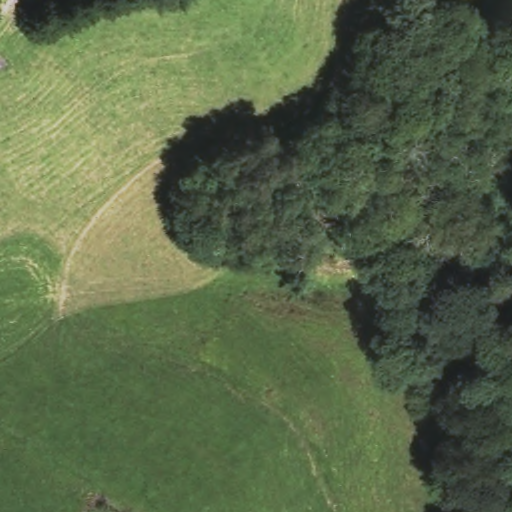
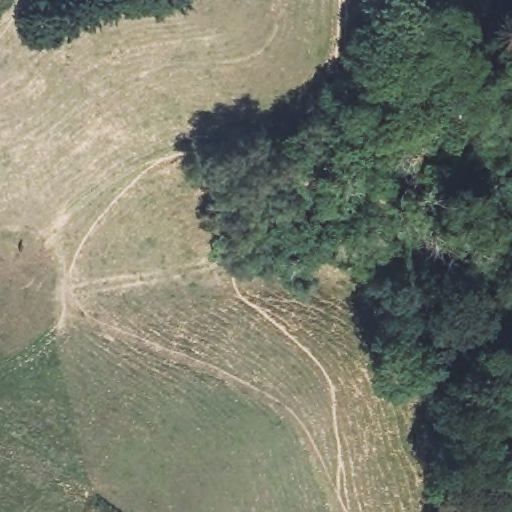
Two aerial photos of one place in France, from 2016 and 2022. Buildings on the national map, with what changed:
[]

